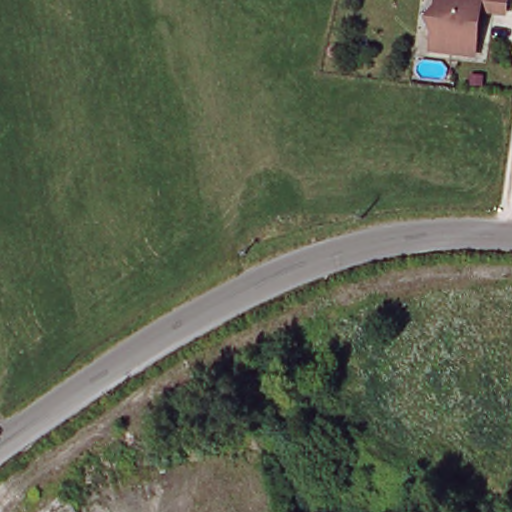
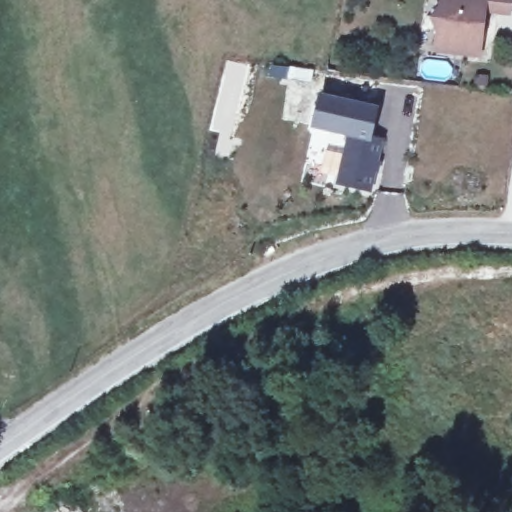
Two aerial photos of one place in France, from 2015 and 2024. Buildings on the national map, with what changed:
unchanged [(491,7),(485,6),(480,51),(436,48),(440,0),(510,0),(510,9),(491,7)]
new [(335,184),(345,136),(312,129),(318,94),(378,106),(372,137),(382,139),(370,192),(335,184)]

